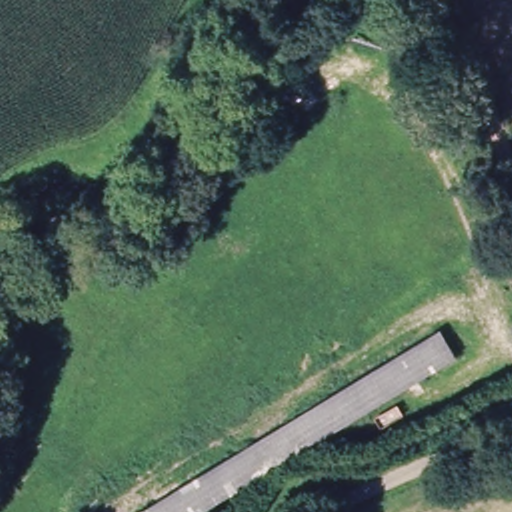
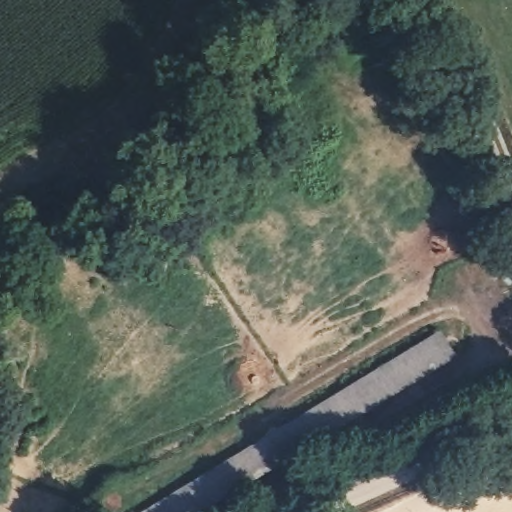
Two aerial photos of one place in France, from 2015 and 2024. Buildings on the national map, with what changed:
unchanged [(441,329),(457,354),(200,512),(146,512),(441,329)]

